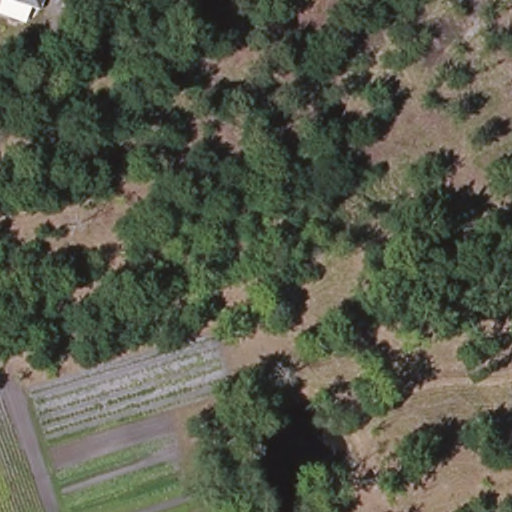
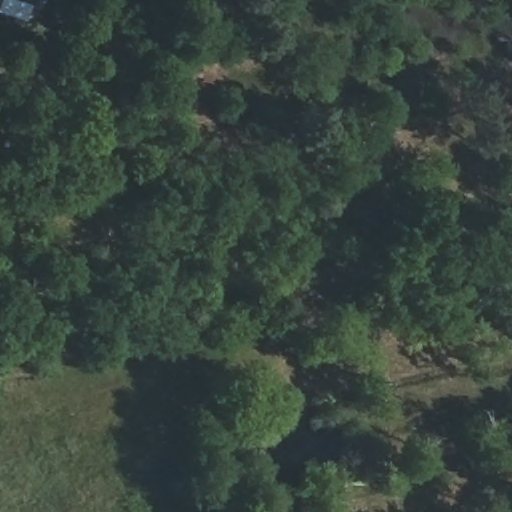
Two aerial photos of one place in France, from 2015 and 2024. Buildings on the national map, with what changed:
unchanged [(29,7),(23,22),(0,14),(0,0),(43,0),(39,11),(29,7)]

